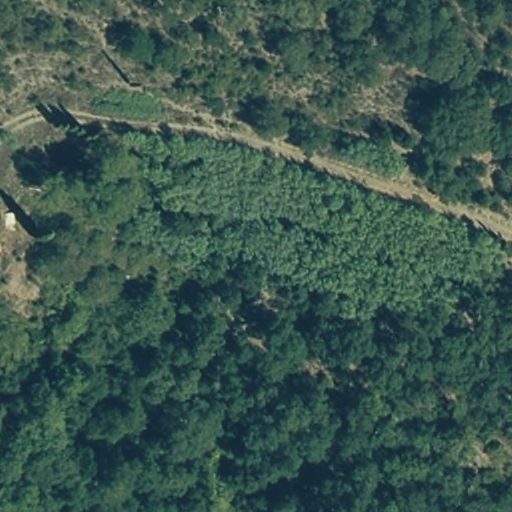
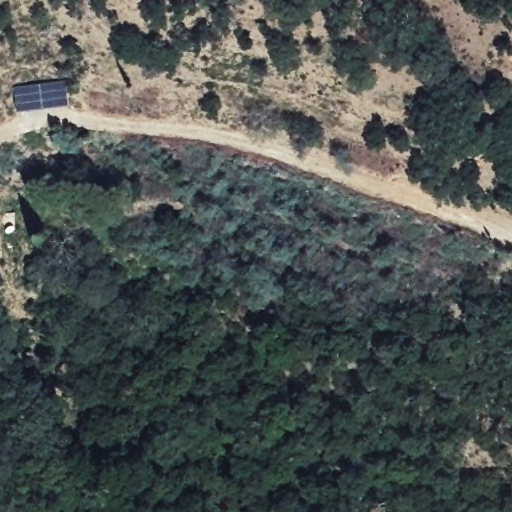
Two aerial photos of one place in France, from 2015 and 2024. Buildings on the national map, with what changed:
new [(13,89),(65,83),(68,107),(16,114),(13,89)]

